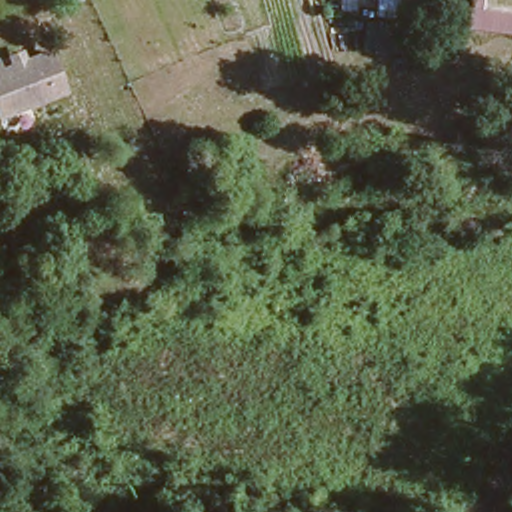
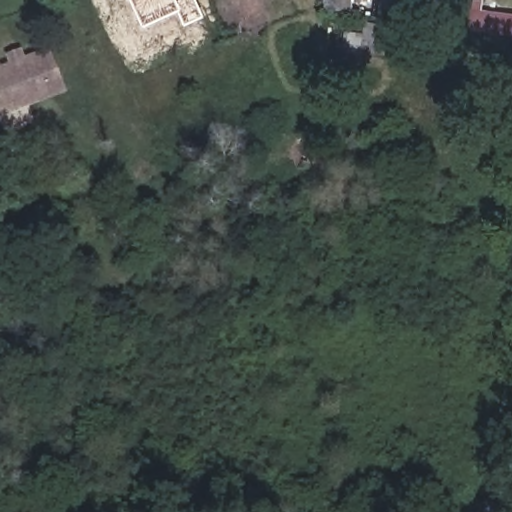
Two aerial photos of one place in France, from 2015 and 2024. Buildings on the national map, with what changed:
new [(177,10),(142,24),(131,0),(196,0),(205,17),(184,25),(177,10)]
unchanged [(464,30),(468,0),(478,2),(477,7),(512,13),(512,34),(464,30)]
unchanged [(358,52),(363,19),(396,22),(392,56),(358,52)]
unchanged [(0,71),(46,53),(61,91),(0,114),(0,71)]

